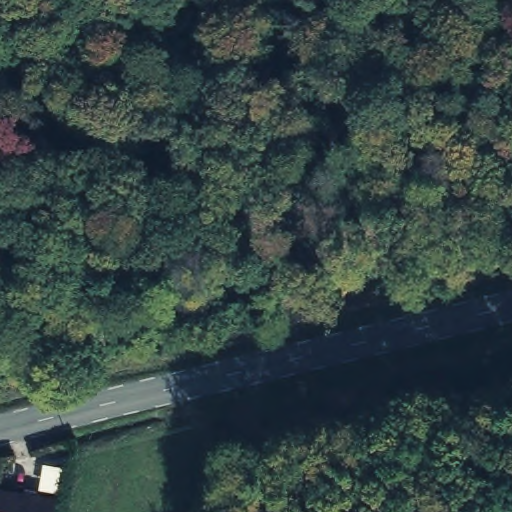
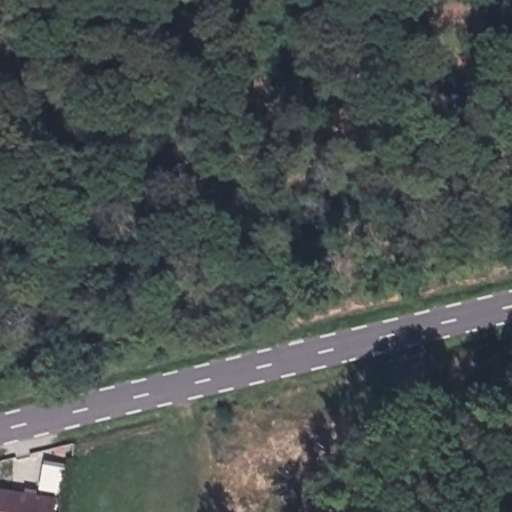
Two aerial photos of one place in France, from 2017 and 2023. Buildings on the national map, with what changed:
unchanged [(54,512),(0,512),(0,490),(56,501),(54,512)]

